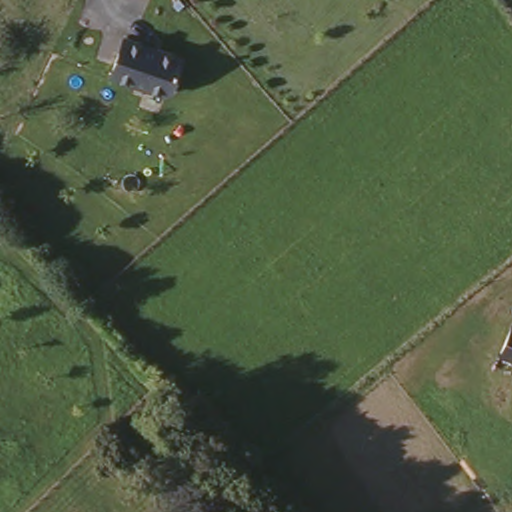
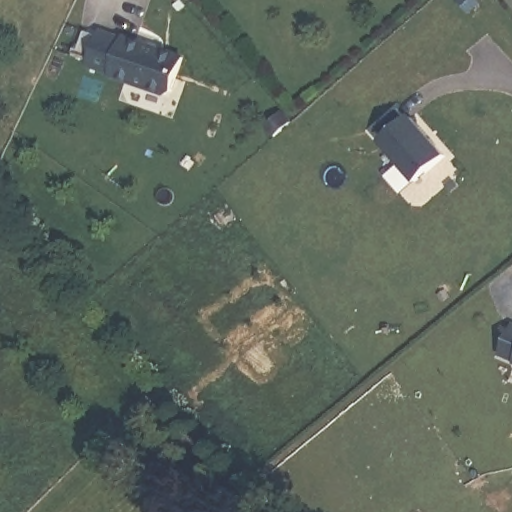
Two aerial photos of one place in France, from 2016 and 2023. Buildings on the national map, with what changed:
unchanged [(124,36),(185,57),(172,99),(111,77),(124,36)]
new [(414,117),(447,157),(416,183),(382,141),(414,117)]
unchanged [(499,353),(512,321),(512,359),(499,353)]

